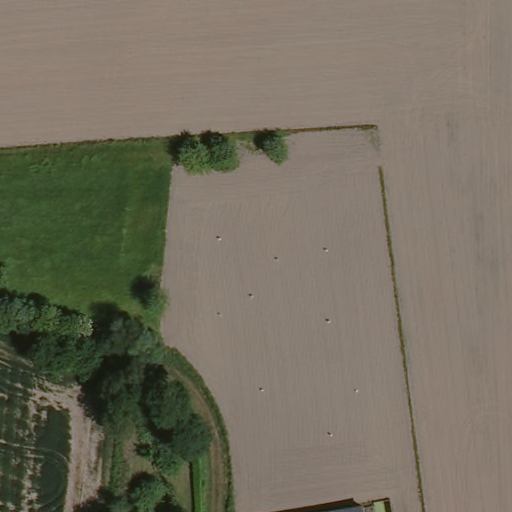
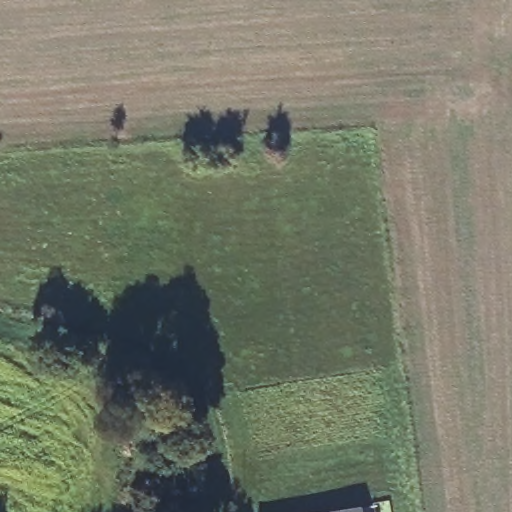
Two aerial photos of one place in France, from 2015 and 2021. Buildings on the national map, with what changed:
unchanged [(137,317),(115,314),(118,299),(139,301),(137,317)]

